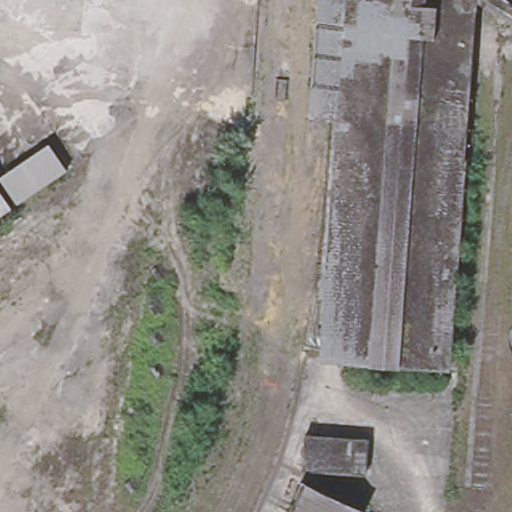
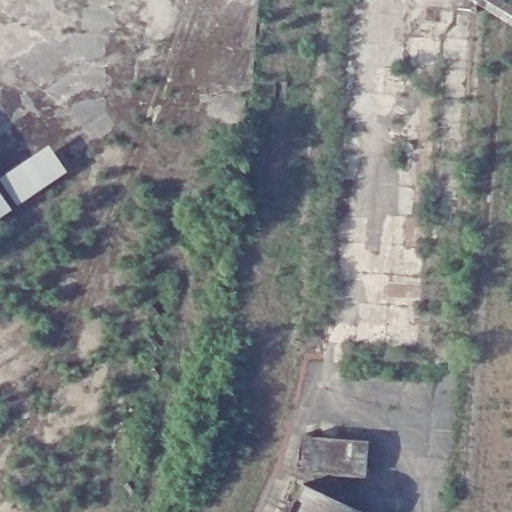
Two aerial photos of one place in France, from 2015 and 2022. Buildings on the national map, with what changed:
demolished [(344,0),(477,0),(472,71),(465,172),(332,162),(344,0)]
unchanged [(52,146),(70,173),(21,207),(3,180),(52,146)]
demolished [(456,281),(451,353),(442,373),(318,363),(332,162),(465,172),(456,281)]
unchanged [(0,221),(0,190),(15,211),(0,221)]
unchanged [(369,441),(366,477),(303,473),(306,437),(369,441)]
unchanged [(302,484),(363,512),(289,512),(302,484)]

